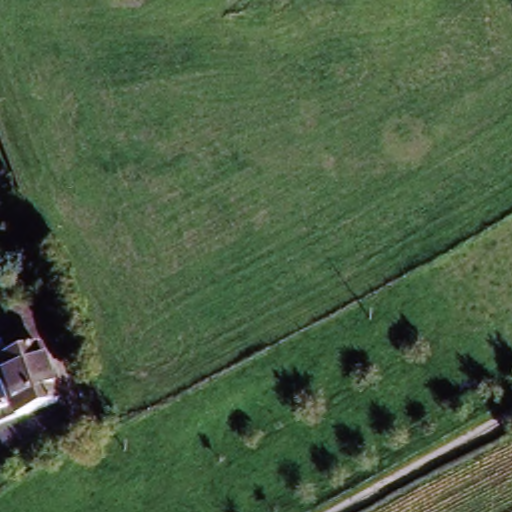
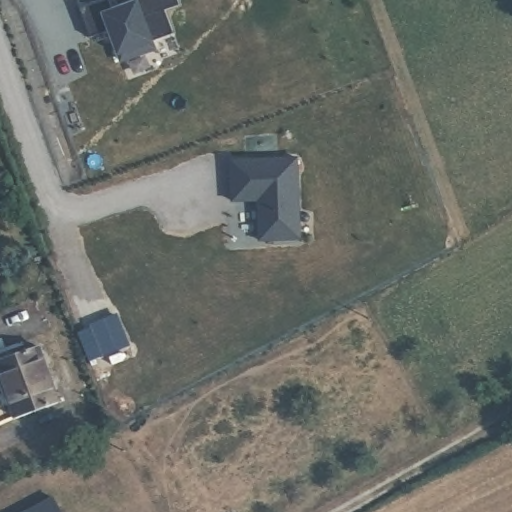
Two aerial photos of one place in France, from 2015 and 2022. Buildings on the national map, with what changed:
new [(112,0),(115,13),(139,7),(136,0),(178,0),(178,5),(164,9),(173,43),(122,65),(109,35),(92,37),(83,10),(109,0),(112,0)]
new [(301,150),(301,245),(257,245),(260,209),(235,207),(231,147),(301,150)]
unchanged [(0,383),(0,357),(32,347),(49,402),(10,414),(0,383)]
new [(63,496),(71,512),(35,512),(63,496)]

